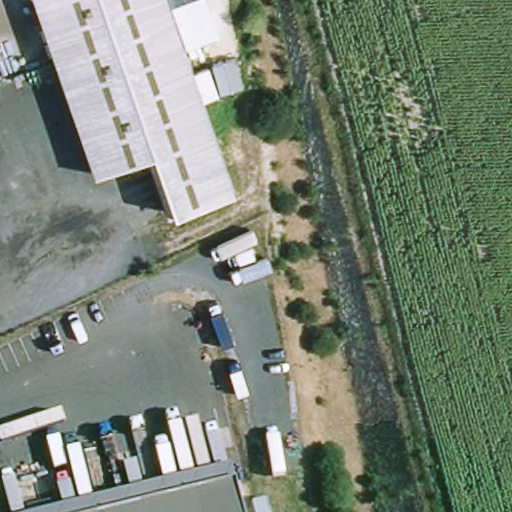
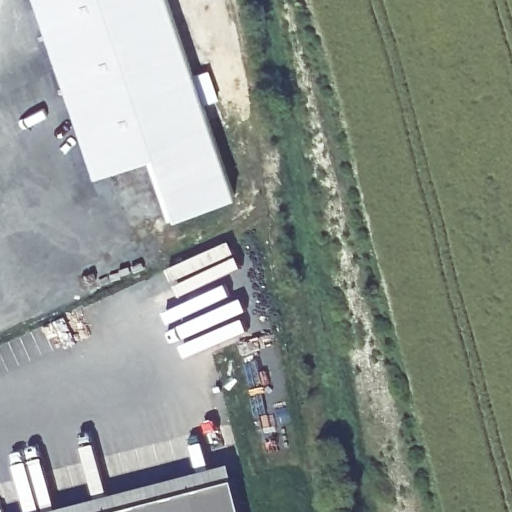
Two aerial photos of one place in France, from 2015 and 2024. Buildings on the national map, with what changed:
unchanged [(32,0),(166,0),(194,81),(209,76),(219,104),(204,109),(235,200),(176,221),(154,159),(95,179),(32,0)]
unchanged [(236,482),(243,512),(49,512),(229,465),(236,482)]

